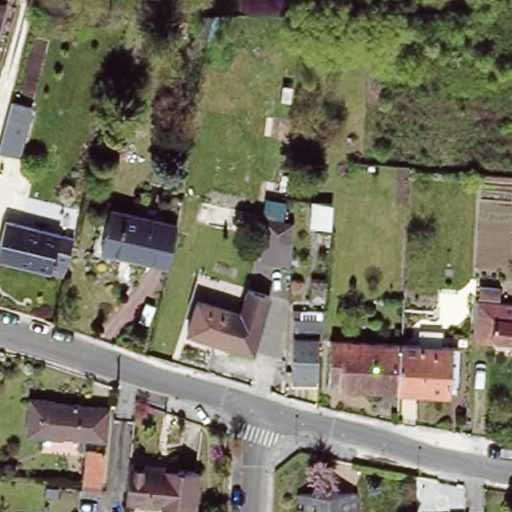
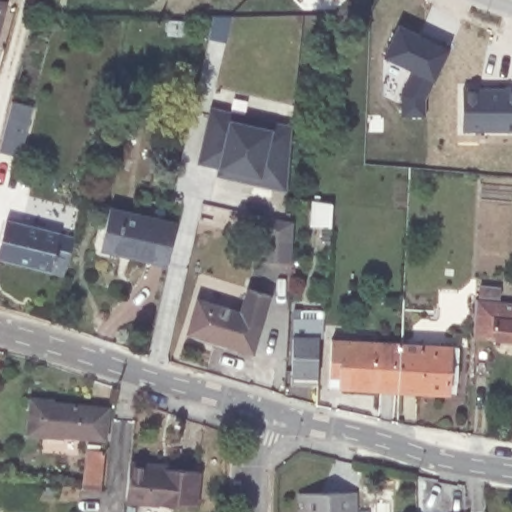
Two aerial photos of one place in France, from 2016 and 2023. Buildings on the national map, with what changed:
unchanged [(0,14),(0,0),(4,0),(3,2),(0,14)]
unchanged [(214,16),(208,40),(198,37),(202,16),(214,16)]
unchanged [(183,33),(169,32),(170,20),(184,20),(183,33)]
new [(398,24),(431,39),(432,37),(450,45),(424,100),(424,114),(401,114),(402,93),(412,69),(383,55),(398,24)]
new [(462,87),(505,88),(505,85),(512,86),(512,130),(462,129),(462,87)]
unchanged [(20,159),(0,152),(0,142),(10,101),(34,107),(20,159)]
new [(217,176),(217,168),(197,164),(210,106),(292,125),(287,191),(217,176)]
unchanged [(122,255),(122,250),(100,245),(110,208),(177,223),(167,264),(122,255)]
unchanged [(293,221),(291,262),(259,259),(260,217),(293,221)]
unchanged [(54,262),(50,272),(0,259),(0,245),(6,220),(73,238),(66,265),(54,262)]
unchanged [(267,314),(257,347),(194,327),(203,295),(267,314)]
unchanged [(473,337),(475,299),(512,302),(512,340),(473,337)]
unchanged [(290,384),(292,334),(294,334),(294,318),(323,318),(322,337),(320,337),(317,379),(317,386),(306,385),(290,384)]
unchanged [(340,388),(341,377),(330,377),(332,340),(400,344),(397,391),(340,388)]
unchanged [(457,348),(457,382),(449,382),(448,394),(397,391),(400,344),(457,348)]
unchanged [(30,398),(47,399),(46,402),(109,408),(106,441),(44,434),(44,437),(26,436),(30,398)]
unchanged [(83,489),(85,449),(103,451),(99,491),(83,489)]
unchanged [(125,501),(129,464),(199,472),(196,509),(125,501)]
unchanged [(302,493),(357,493),(357,512),(302,512),(302,493)]

